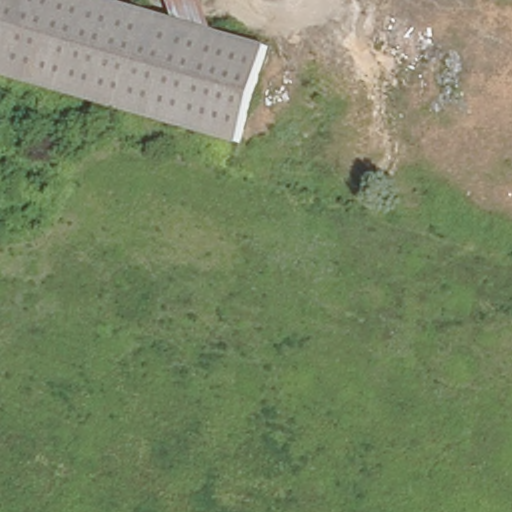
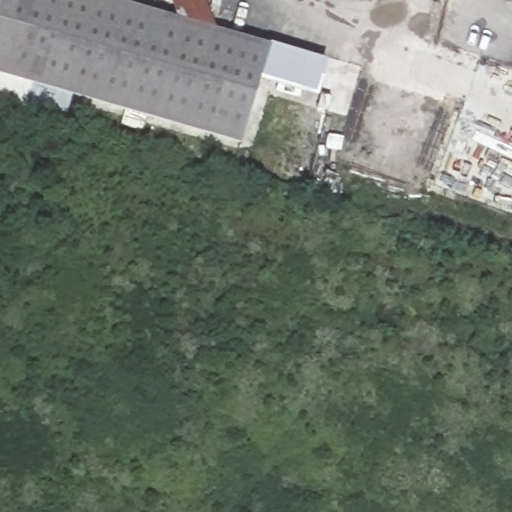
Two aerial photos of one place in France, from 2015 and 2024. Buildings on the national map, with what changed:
unchanged [(0,77),(0,0),(137,0),(165,7),(162,0),(194,0),(201,17),(259,34),(230,141),(0,77)]
new [(327,61),(317,95),(247,76),(257,41),(327,61)]

